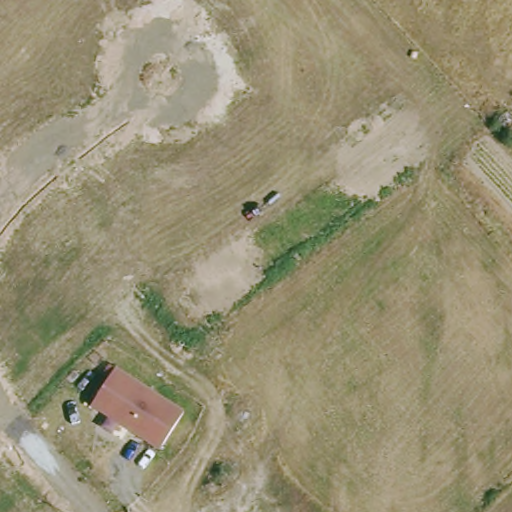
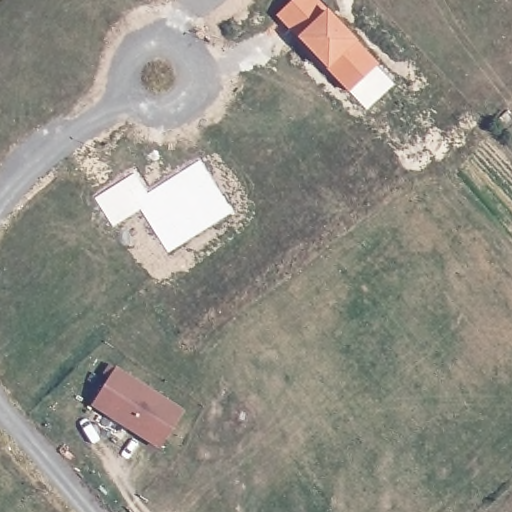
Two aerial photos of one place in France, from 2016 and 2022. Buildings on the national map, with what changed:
new [(293,0),(316,0),(376,68),(348,93),(279,13),(293,0)]
new [(95,200),(135,174),(148,195),(200,162),(232,213),(169,253),(141,210),(113,228),(95,200)]
unchanged [(117,371),(185,414),(161,452),(91,411),(117,371)]

